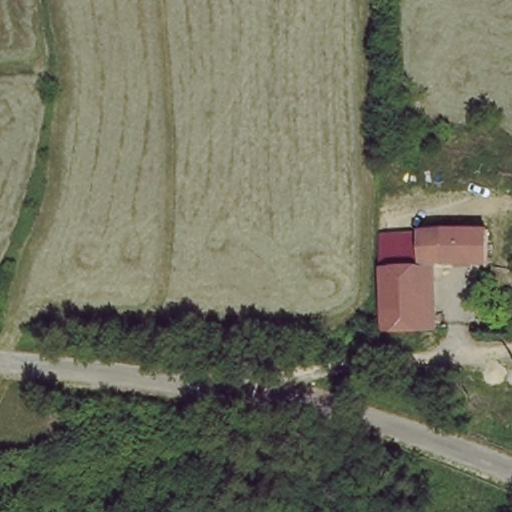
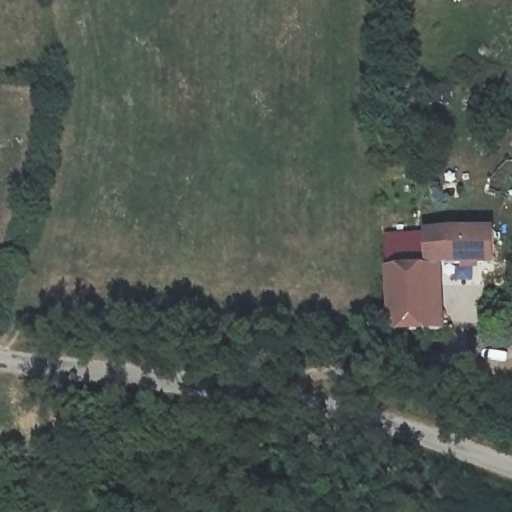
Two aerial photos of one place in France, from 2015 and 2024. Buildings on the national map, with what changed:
unchanged [(445,339),(432,339),(392,340),(394,259),(427,258),(428,240),(499,239),(498,265),(434,267),(433,274),(445,275),(445,339)]

